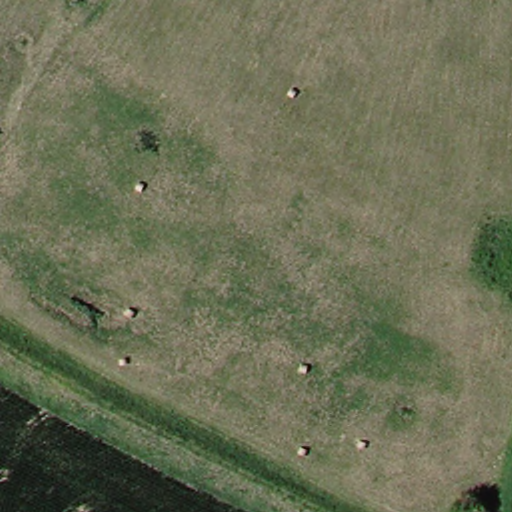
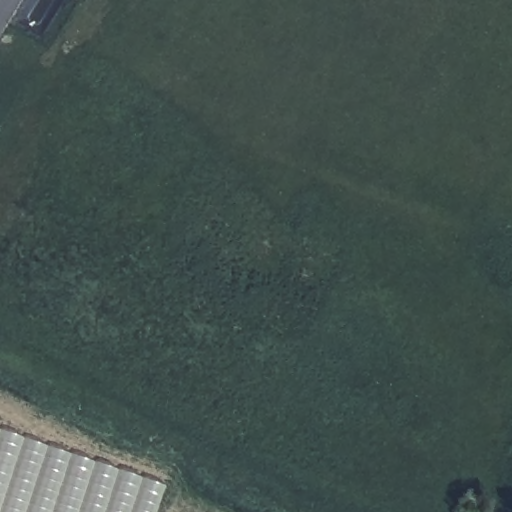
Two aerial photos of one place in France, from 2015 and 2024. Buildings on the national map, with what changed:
new [(166,486),(156,512),(0,512),(0,430),(166,486)]

